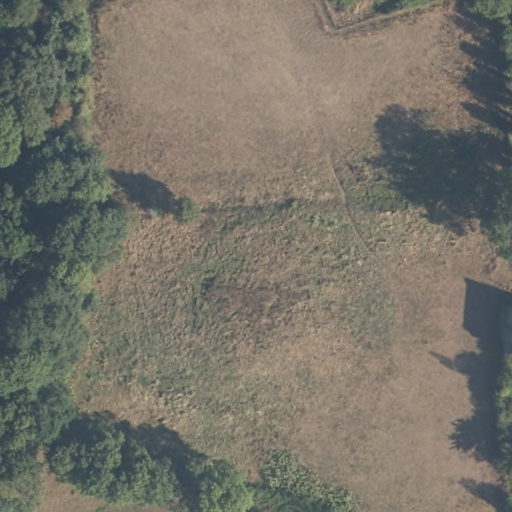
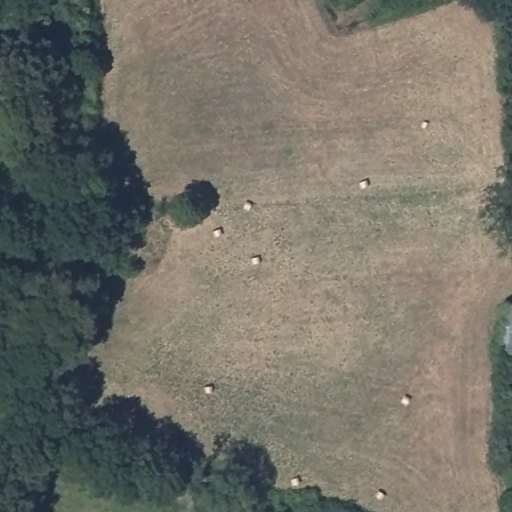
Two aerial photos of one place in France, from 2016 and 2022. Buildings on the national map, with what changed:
unchanged [(504,348),(501,300),(512,300),(512,348),(504,348)]

